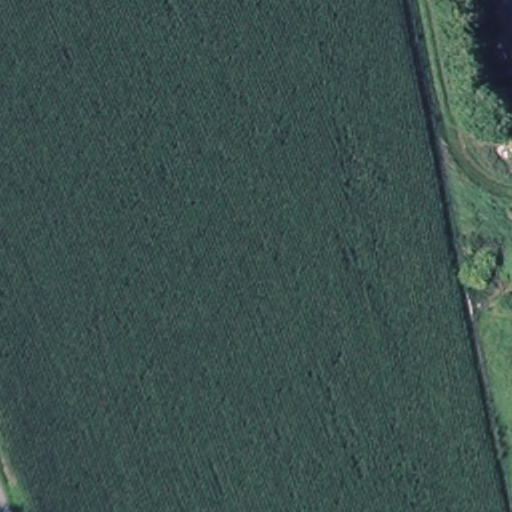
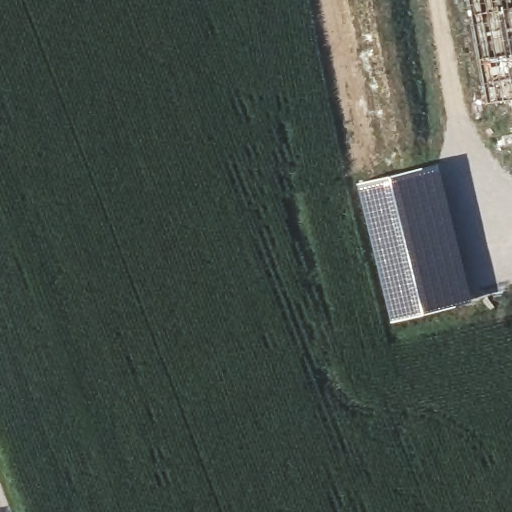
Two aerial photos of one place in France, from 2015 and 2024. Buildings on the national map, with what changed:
new [(440,162),(473,298),(392,318),(358,182),(440,162)]

